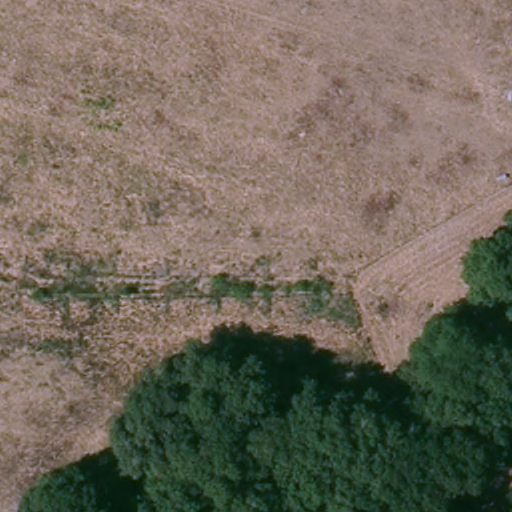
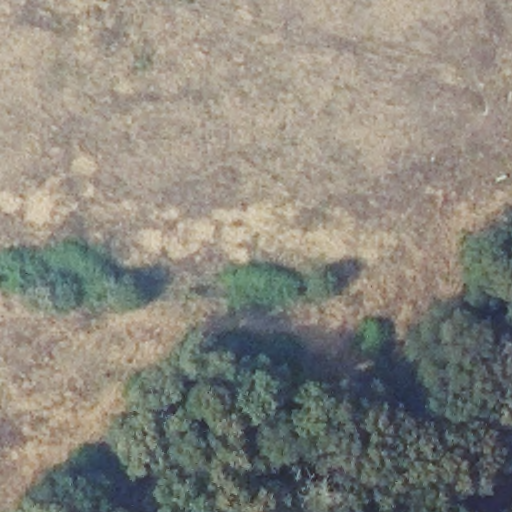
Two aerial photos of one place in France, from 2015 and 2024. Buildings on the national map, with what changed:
unchanged [(494,512),(479,503),(512,448),(512,512),(494,512)]

